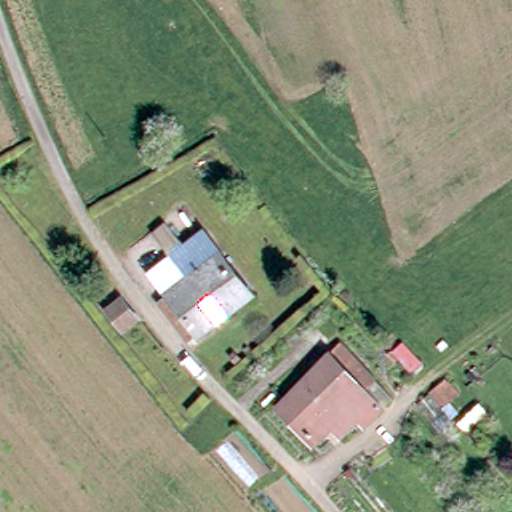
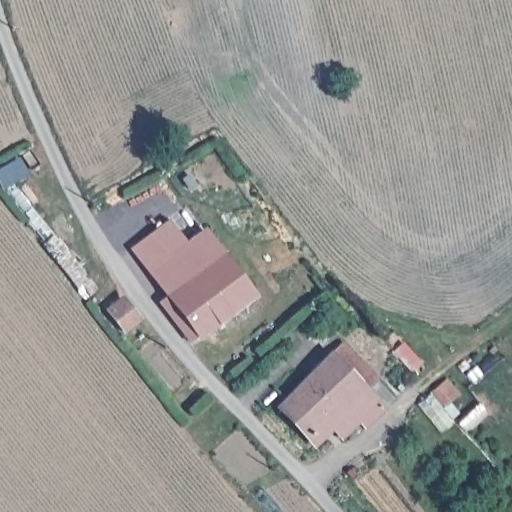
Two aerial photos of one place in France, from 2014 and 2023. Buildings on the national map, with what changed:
unchanged [(194,217),(144,257),(127,235),(178,198),(194,217)]
unchanged [(205,232),(154,271),(144,257),(194,217),(205,232)]
unchanged [(255,293),(189,341),(160,303),(169,296),(151,272),(154,271),(205,232),(255,293)]
unchanged [(331,356),(381,405),(362,425),(354,419),(339,435),(332,428),(316,442),(280,408),(331,356)]

